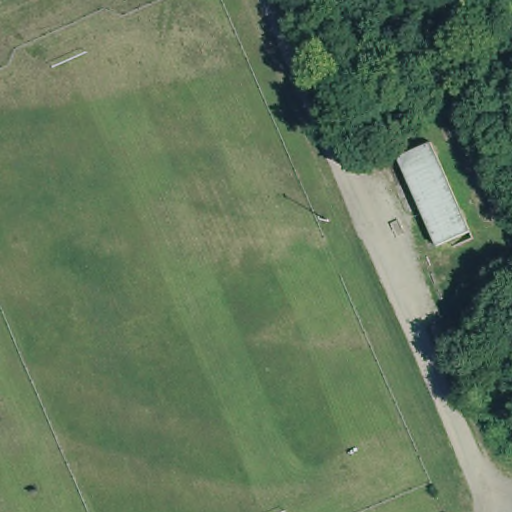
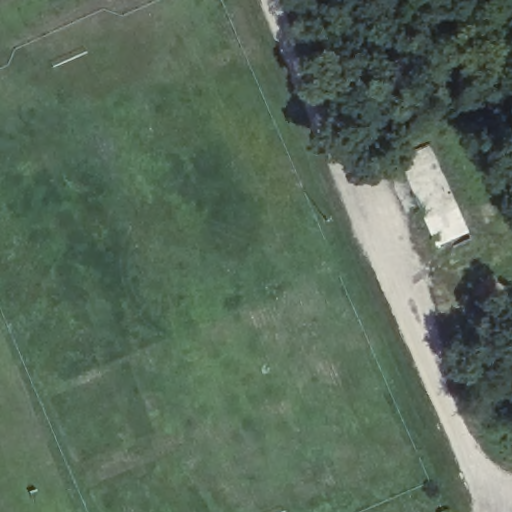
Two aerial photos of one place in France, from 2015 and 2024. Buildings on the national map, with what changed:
unchanged [(399,152),(433,137),(469,227),(439,241),(399,152)]

